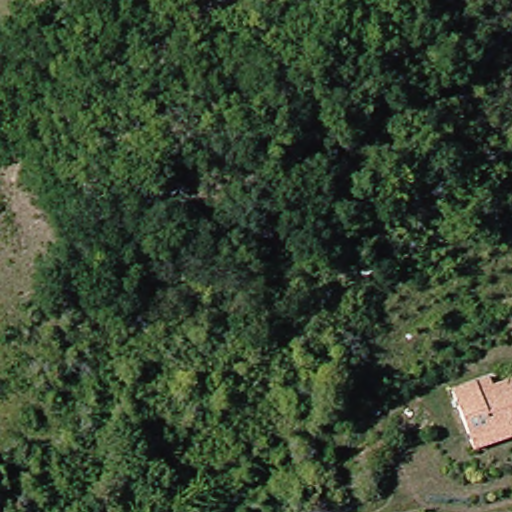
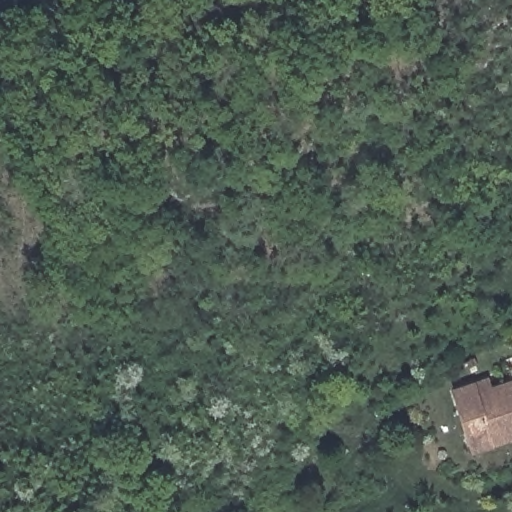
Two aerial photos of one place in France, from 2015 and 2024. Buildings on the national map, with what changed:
unchanged [(494,381),(496,391),(512,386),(512,444),(477,455),(459,395),(494,381)]

